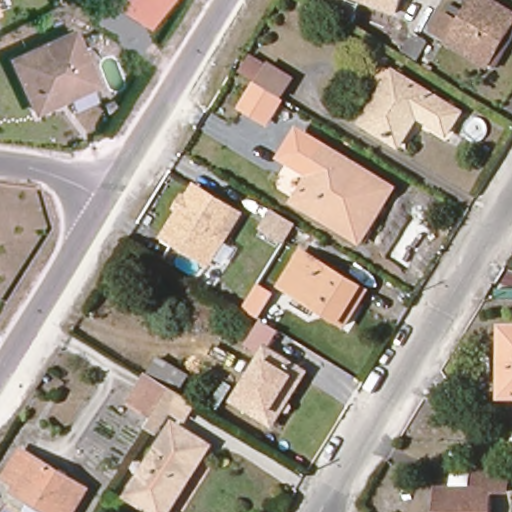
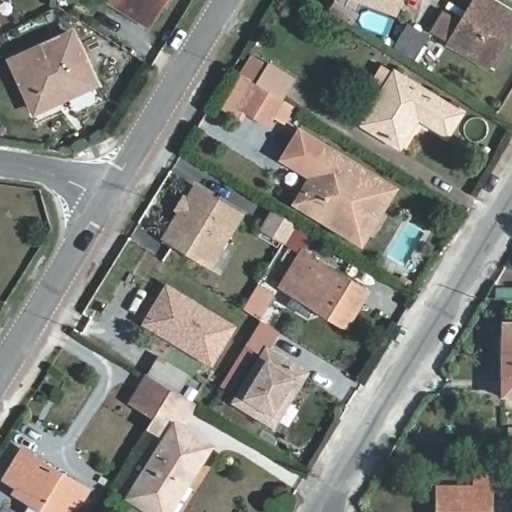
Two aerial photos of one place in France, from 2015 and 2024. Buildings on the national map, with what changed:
unchanged [(105,2),(106,0),(168,0),(148,30),(105,2)]
unchanged [(363,0),(401,0),(396,13),(363,0)]
unchanged [(488,66),(431,31),(443,14),(461,25),(467,14),(450,3),(451,0),(492,0),(512,12),(512,40),(494,70),(488,66)]
unchanged [(64,113),(56,95),(29,106),(7,56),(69,30),(91,80),(88,81),(96,99),(64,113)]
unchanged [(295,79),(282,99),(294,106),(280,128),(245,106),(258,83),(239,71),(251,55),(295,79)]
unchanged [(386,92),(371,83),(383,64),(463,114),(449,134),(421,115),(400,147),(365,124),(386,92)]
unchanged [(301,126),(332,146),(330,149),(323,158),(309,180),(278,158),(301,126)]
unchanged [(318,215),(296,202),(309,180),(323,158),(330,149),(393,189),(382,207),(360,242),(318,215)]
unchanged [(170,240),(179,227),(192,205),(200,191),(245,218),(215,268),(170,240)]
unchanged [(285,242),(261,227),(272,210),(296,224),(285,242)]
unchanged [(303,251),(368,293),(347,327),(281,285),(303,251)]
new [(212,366),(141,323),(165,282),(236,325),(212,366)]
unchanged [(505,329),(512,329),(512,399),(503,399),(504,379),(505,363),(505,329)]
unchanged [(267,423),(235,403),(267,349),(307,374),(296,392),(273,427),(267,423)]
unchanged [(186,419),(172,411),(157,434),(148,429),(154,418),(131,403),(147,375),(160,356),(189,374),(177,394),(195,404),(186,419)]
unchanged [(176,424),(210,446),(167,512),(154,512),(128,496),(176,424)]
unchanged [(75,512),(24,512),(31,501),(16,491),(17,487),(5,479),(25,448),(90,491),(75,512)]
unchanged [(438,489),(475,489),(475,470),(507,471),(507,490),(492,490),(492,512),(438,512),(438,489)]

